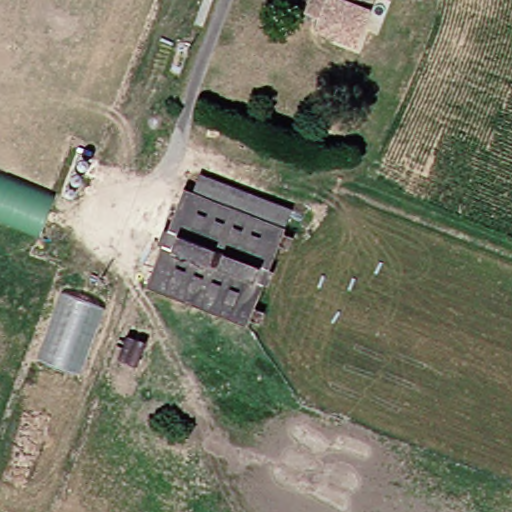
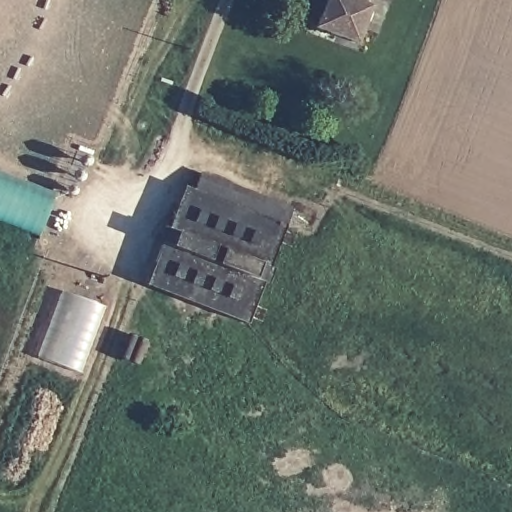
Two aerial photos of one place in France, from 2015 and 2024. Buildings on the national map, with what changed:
unchanged [(361,55),(318,40),(322,30),(308,25),(317,0),(381,0),(361,55)]
unchanged [(0,174),(57,196),(42,235),(0,219),(0,174)]
unchanged [(154,281),(192,184),(291,221),(253,320),(154,281)]
unchanged [(103,306),(81,375),(40,362),(64,292),(103,306)]

